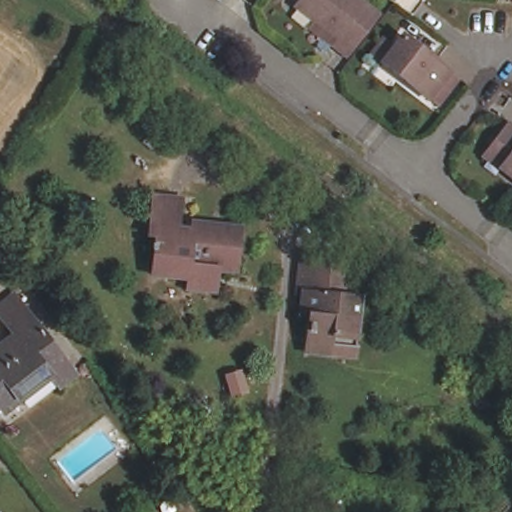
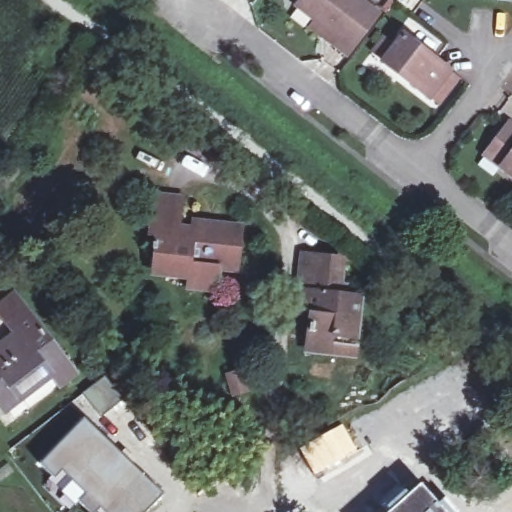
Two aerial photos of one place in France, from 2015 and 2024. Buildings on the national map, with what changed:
unchanged [(318,23),(302,10),(311,0),(354,0),(378,20),(349,56),(336,48),(341,42),(326,30),(321,35),(313,29),(318,23)]
unchanged [(427,101),(425,103),(381,68),(384,65),(371,56),(383,41),(395,51),(401,43),(425,61),(429,56),(436,61),(432,67),(446,78),(443,81),(455,90),(438,110),(427,101)]
unchanged [(192,139),(171,155),(160,142),(150,129),(172,113),(192,139)]
unchanged [(493,147),(512,124),(512,174),(506,169),(487,154),(493,147)]
unchanged [(188,284),(190,277),(157,269),(165,234),(156,231),(163,192),(190,198),(185,227),(198,230),(200,223),(250,233),(242,273),(222,269),(218,290),(188,284)]
unchanged [(308,306),(310,288),(305,287),(310,249),(352,255),(350,279),(359,280),(357,294),(369,295),(363,335),(341,332),(338,351),(315,348),(317,326),(305,325),(308,306)]
unchanged [(51,367),(6,404),(0,397),(0,348),(21,331),(4,309),(20,297),(76,366),(61,378),(51,367)]
unchanged [(254,362),(260,387),(228,396),(226,370),(254,362)]
new [(85,420),(164,494),(147,512),(90,512),(78,502),(75,505),(51,483),(55,478),(41,465),(85,420)]
new [(342,424),(356,450),(312,475),(296,448),(342,424)]
new [(420,482),(439,502),(443,498),(456,512),(385,512),(420,482)]

